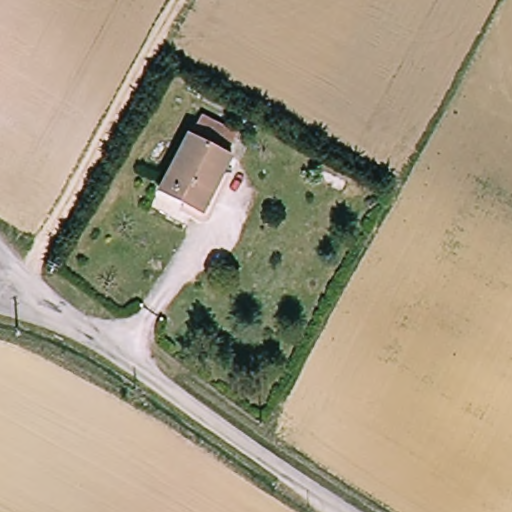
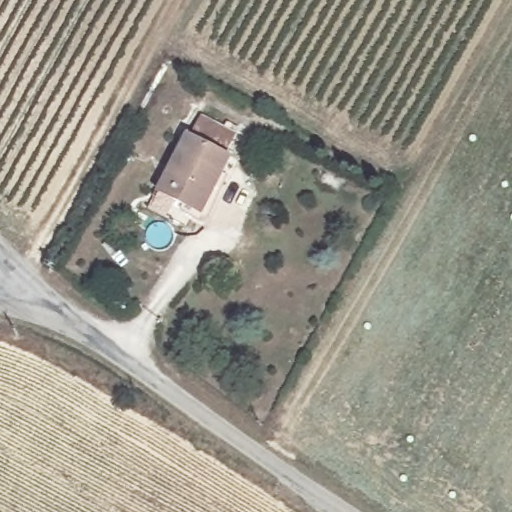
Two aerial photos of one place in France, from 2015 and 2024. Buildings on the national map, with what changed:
unchanged [(199,217),(156,192),(201,113),(238,134),(225,157),(231,163),(199,217)]

